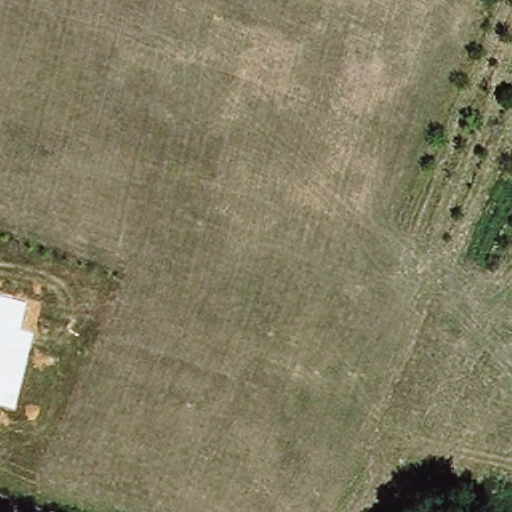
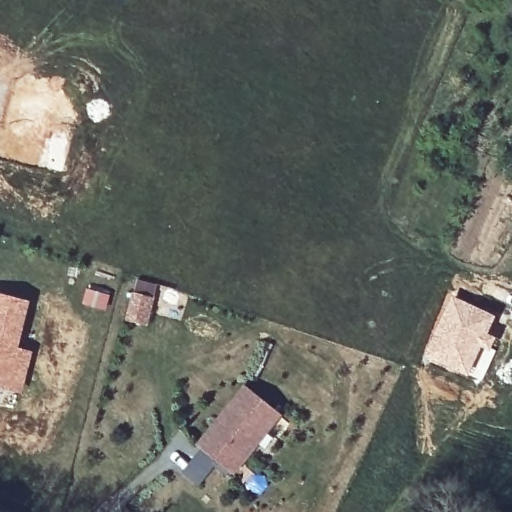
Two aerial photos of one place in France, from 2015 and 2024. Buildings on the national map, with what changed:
new [(453,295),(497,316),(490,333),(498,338),(494,347),(496,350),(480,382),(423,356),(453,295)]
new [(26,304),(18,331),(32,335),(26,354),(10,411),(0,408),(0,297),(26,304)]
new [(133,297),(152,302),(144,327),(125,320),(133,297)]
new [(210,432),(211,435),(231,408),(230,407),(243,390),(278,417),(264,434),(262,432),(242,458),(244,460),(230,477),(196,450),(210,432)]

